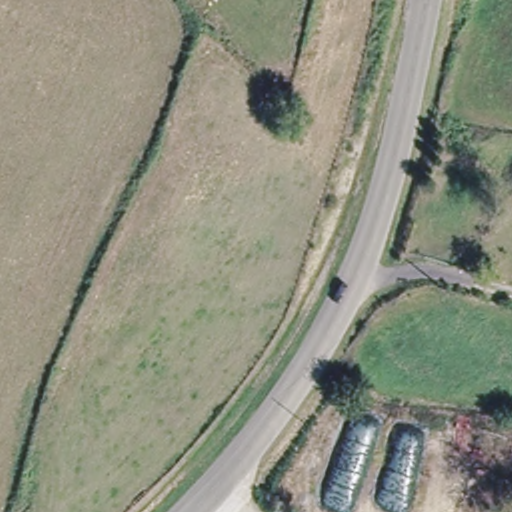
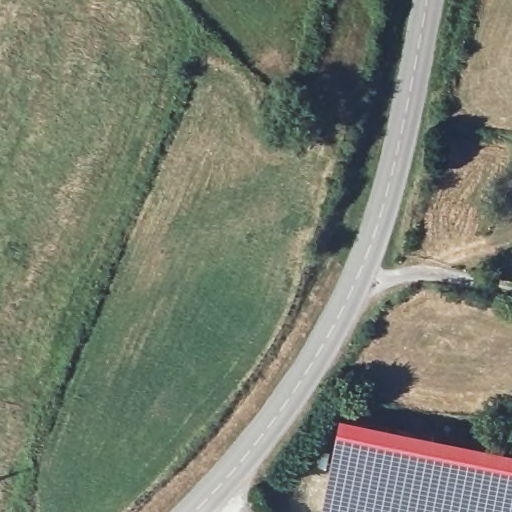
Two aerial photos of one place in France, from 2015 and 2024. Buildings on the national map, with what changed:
new [(322,512),(338,415),(512,449),(512,512),(322,512)]

